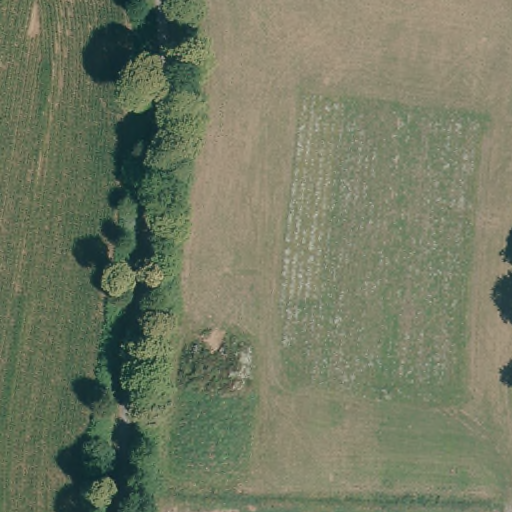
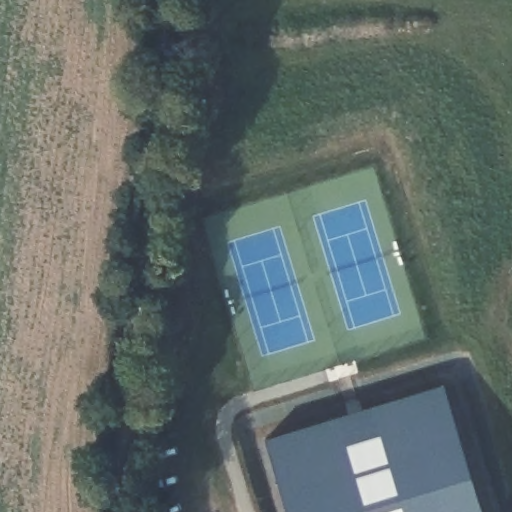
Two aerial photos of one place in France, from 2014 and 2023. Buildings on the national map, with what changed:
new [(264,438),(443,385),(481,512),(286,512),(264,438)]

